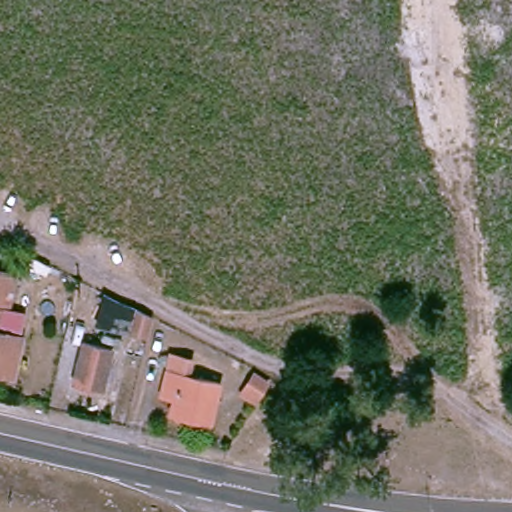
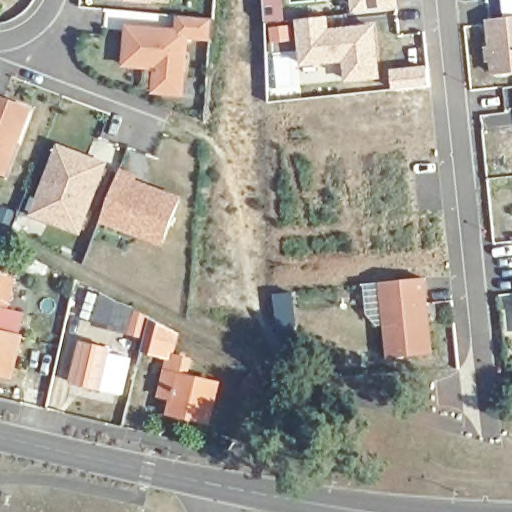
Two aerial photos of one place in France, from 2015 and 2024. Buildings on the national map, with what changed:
new [(170,0),(170,2),(152,1),(151,3),(103,0),(170,0)]
new [(353,14),(352,0),(400,0),(401,9),(353,14)]
new [(512,9),(512,61),(500,62),(495,11),(512,9)]
new [(347,82),(344,62),(302,66),(296,20),(328,15),(330,28),(376,24),(380,78),(347,82)]
new [(152,94),(154,70),(124,67),(127,25),(176,28),(178,16),(213,20),(212,39),(192,39),(185,95),(152,94)]
new [(0,97),(31,108),(7,176),(0,174),(0,97)]
new [(109,164),(82,234),(31,215),(59,144),(109,164)]
new [(121,169),(138,174),(136,180),(181,196),(163,246),(101,222),(121,169)]
unchanged [(0,265),(0,242),(3,243),(10,248),(5,267),(0,265)]
new [(435,354),(388,358),(380,283),(427,279),(435,354)]
unchanged [(10,320),(3,318),(1,331),(26,337),(17,376),(0,373),(0,281),(17,285),(10,320)]
new [(152,315),(148,337),(130,333),(95,324),(102,292),(119,302),(137,310),(152,315)]
demolished [(149,342),(128,337),(132,314),(122,309),(125,299),(155,314),(149,342)]
unchanged [(105,391),(80,385),(88,348),(113,353),(105,391)]
unchanged [(210,433),(167,423),(170,406),(159,403),(165,379),(170,362),(190,368),(186,384),(220,392),(210,433)]
unchanged [(249,390),(251,386),(262,369),(275,377),(264,394),(261,398),(249,390)]

